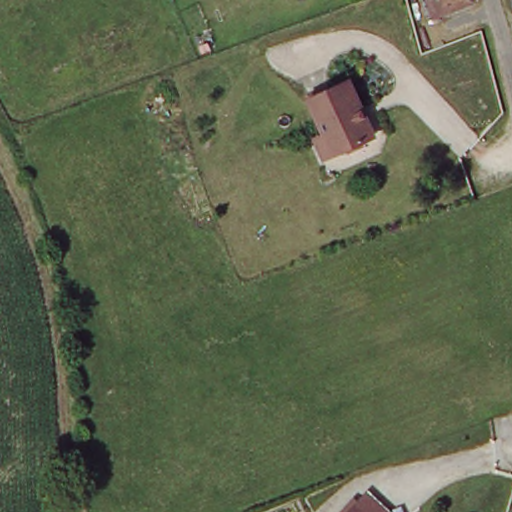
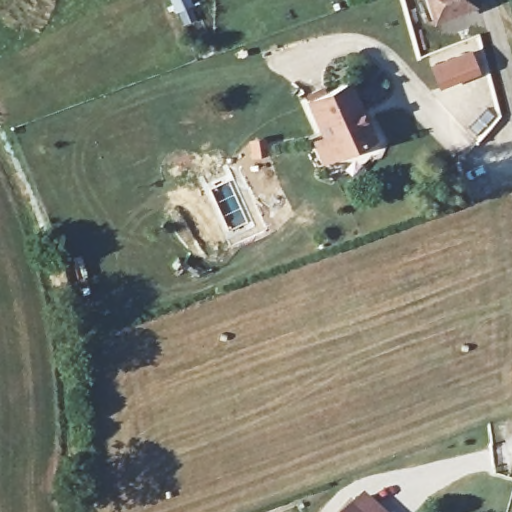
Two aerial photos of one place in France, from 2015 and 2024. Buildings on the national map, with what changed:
unchanged [(425,0),(471,0),(471,1),(432,17),(425,0)]
new [(439,87),(430,64),(471,48),(480,72),(439,87)]
unchanged [(311,137),(320,132),(305,97),(344,81),(368,135),(330,152),(320,157),(311,137)]
unchanged [(367,495),(385,512),(350,512),(367,495)]

